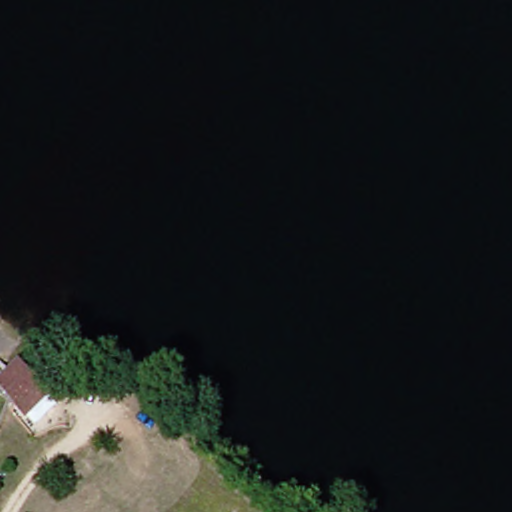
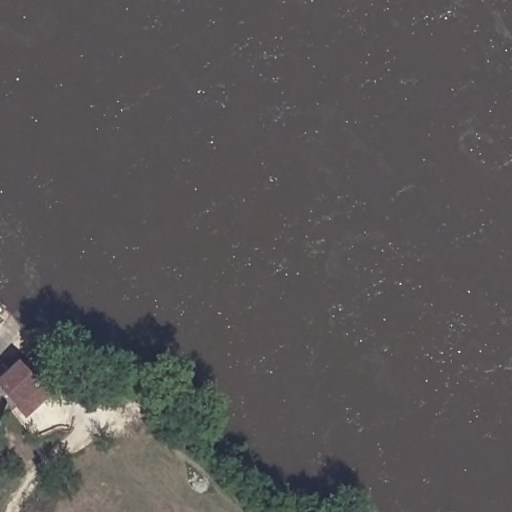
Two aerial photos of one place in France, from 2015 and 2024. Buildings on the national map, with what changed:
unchanged [(32,419),(24,408),(5,384),(26,365),(47,387),(56,396),(32,419)]

